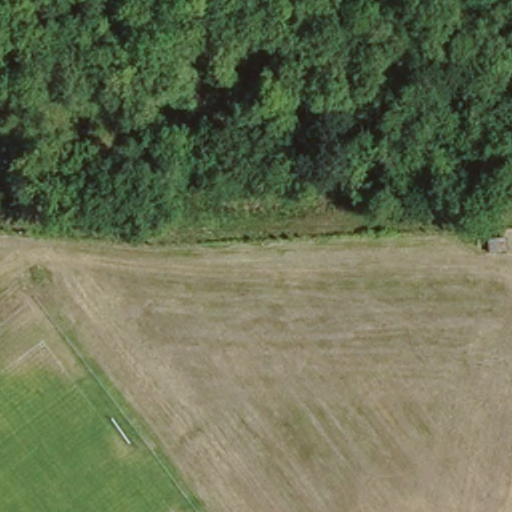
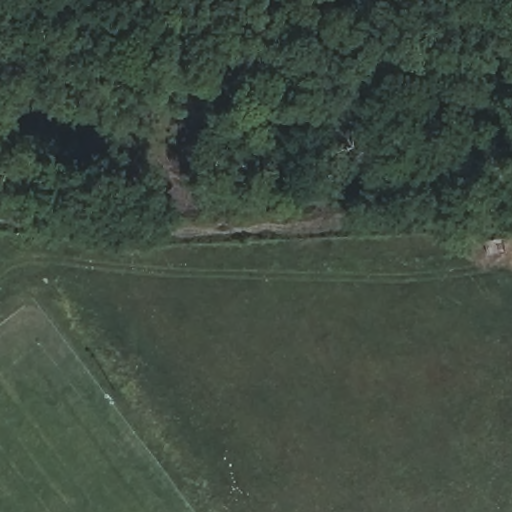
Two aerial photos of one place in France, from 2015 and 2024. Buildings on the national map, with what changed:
unchanged [(512,253),(498,250),(500,240),(512,243),(512,253)]

